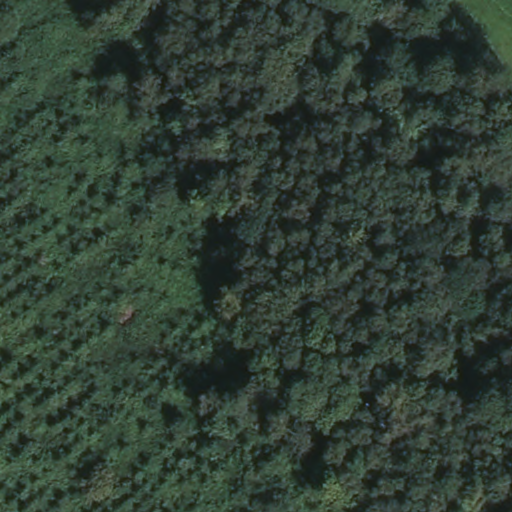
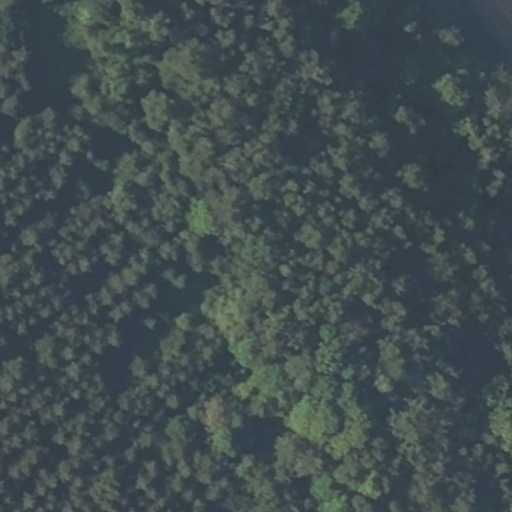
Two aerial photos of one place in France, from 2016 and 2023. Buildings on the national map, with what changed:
[]

